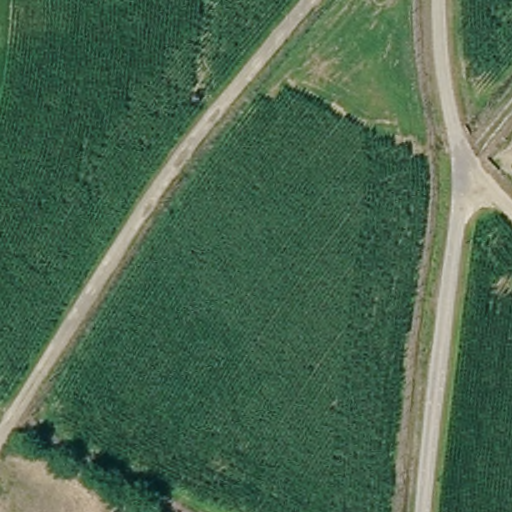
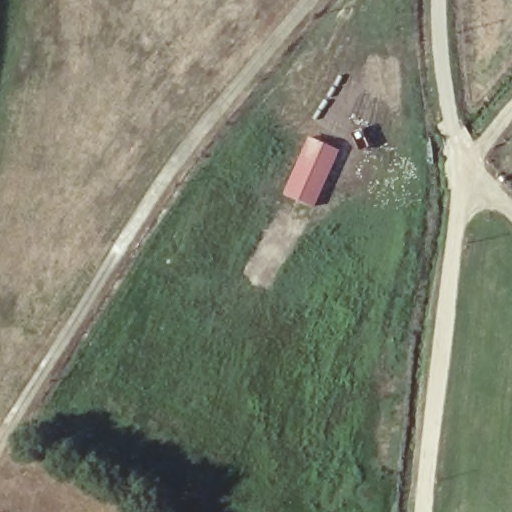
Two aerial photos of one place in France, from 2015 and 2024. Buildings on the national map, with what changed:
new [(328,139),(344,146),(318,203),(287,189),(303,154),(314,149),(317,143),(325,146),(328,139)]

